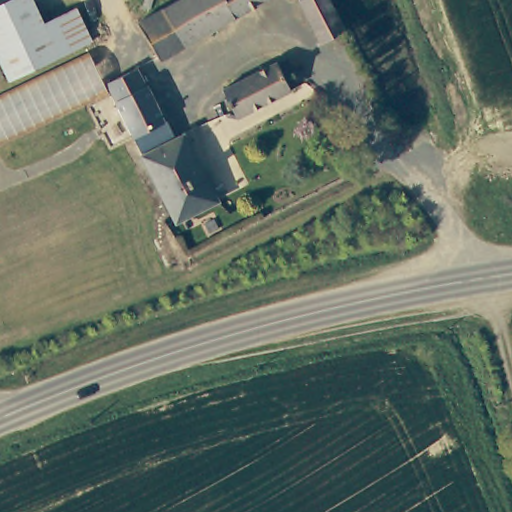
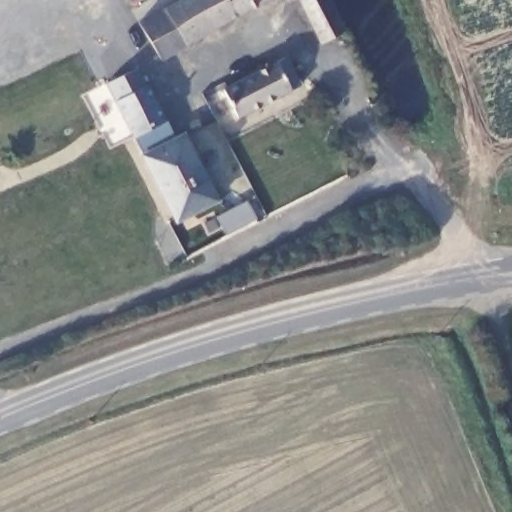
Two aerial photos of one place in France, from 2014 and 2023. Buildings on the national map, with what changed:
demolished [(0,64),(0,11),(18,0),(33,0),(45,25),(77,13),(91,46),(9,82),(0,64)]
unchanged [(164,68),(139,27),(159,16),(185,0),(278,0),(164,68)]
unchanged [(321,45),(301,3),(306,0),(332,0),(345,33),(321,45)]
demolished [(0,149),(0,64),(9,82),(91,46),(102,84),(108,98),(0,149)]
unchanged [(239,125),(222,96),(278,66),(292,94),(239,125)]
unchanged [(129,138),(113,103),(104,84),(135,70),(144,89),(159,122),(131,137),(129,138)]
unchanged [(168,141),(179,136),(213,202),(173,221),(131,137),(159,122),(168,141)]

